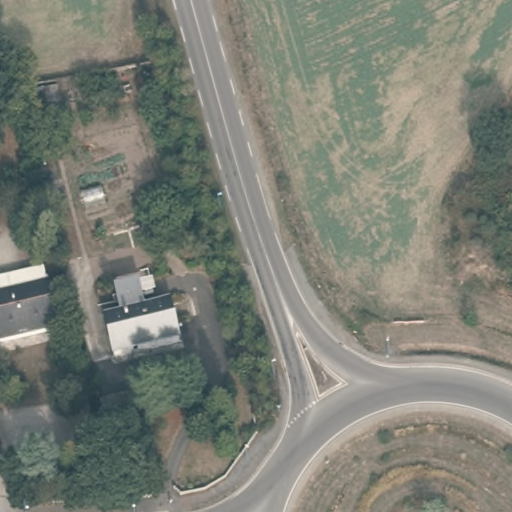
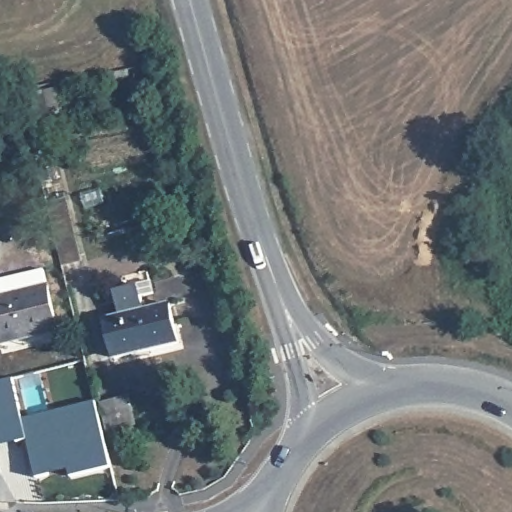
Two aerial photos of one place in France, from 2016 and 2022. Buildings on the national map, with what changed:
unchanged [(68,128),(37,138),(25,94),(56,85),(68,128)]
unchanged [(67,197),(82,259),(63,264),(47,202),(67,197)]
unchanged [(0,343),(0,278),(44,269),(59,329),(0,343)]
unchanged [(174,342),(111,356),(102,318),(117,314),(112,289),(147,282),(150,293),(139,294),(142,309),(165,304),(174,342)]
new [(69,471),(37,478),(28,440),(0,446),(0,379),(12,377),(23,418),(96,401),(97,403),(102,402),(111,432),(104,434),(113,467),(71,478),(69,471)]
unchanged [(151,421),(111,432),(102,402),(143,392),(151,421)]

